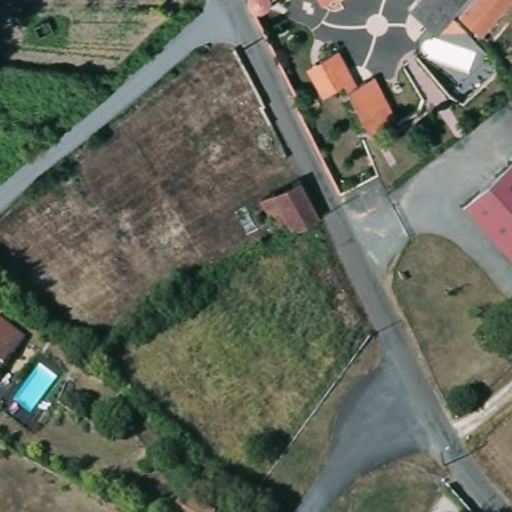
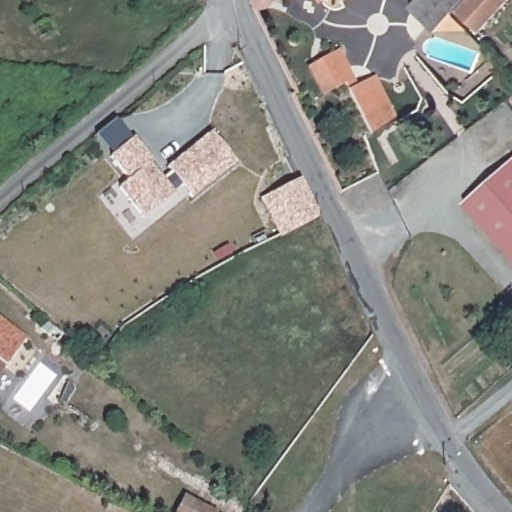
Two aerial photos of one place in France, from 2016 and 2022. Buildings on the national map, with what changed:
unchanged [(454,11),(453,9),(429,31),(407,3),(409,0),(465,0),(454,11)]
unchanged [(478,32),(468,21),(464,23),(454,11),(465,0),(507,0),(478,32)]
unchanged [(53,27),(39,33),(34,21),(48,15),(53,27)]
unchanged [(338,46),(357,81),(376,74),(398,117),(369,131),(343,79),(336,82),(324,59),(322,55),(338,46)]
new [(152,160),(149,163),(164,181),(173,174),(166,166),(210,131),(235,163),(191,197),(182,185),(173,193),(142,216),(119,188),(128,180),(110,156),(113,154),(96,135),(115,120),(131,138),(133,137),(152,160)]
unchanged [(512,155),(512,165),(507,160),(512,155)]
unchanged [(512,165),(512,261),(460,203),(507,160),(512,165)]
unchanged [(269,191),(295,178),(315,216),(286,229),(274,236),(256,198),(269,191)]
unchanged [(1,363),(0,365),(0,320),(22,337),(1,363)]

